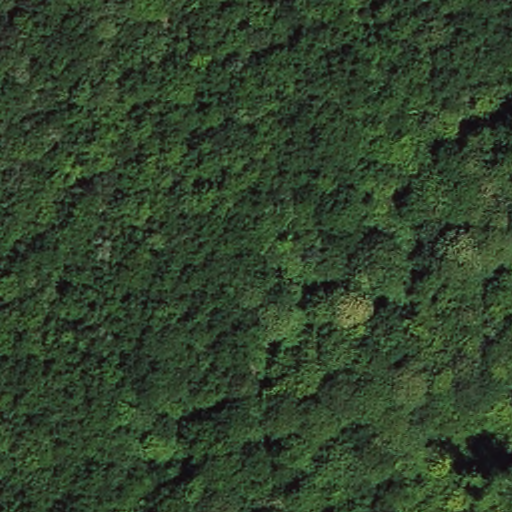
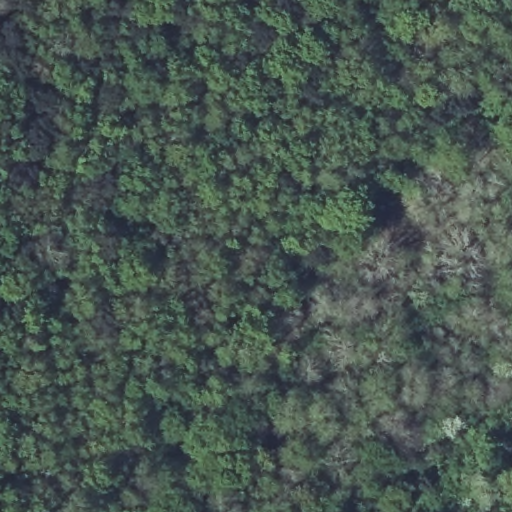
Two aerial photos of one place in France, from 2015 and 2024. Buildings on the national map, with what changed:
[]

